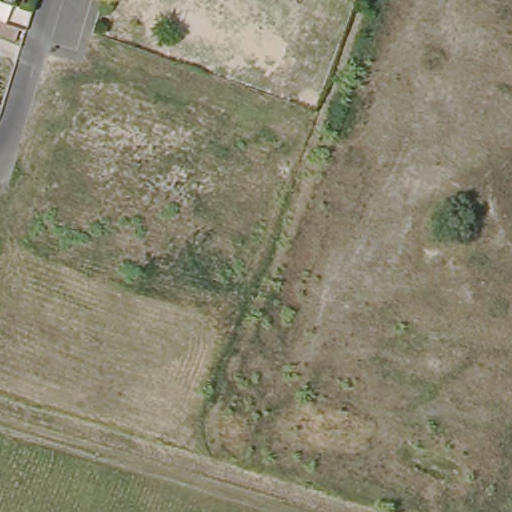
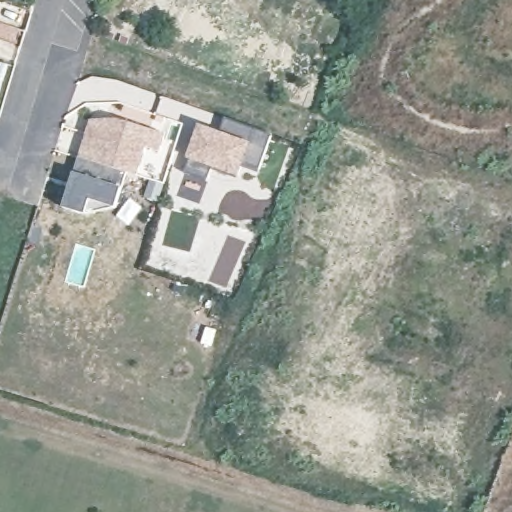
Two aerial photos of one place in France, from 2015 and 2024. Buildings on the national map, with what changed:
new [(219,132),(225,118),(271,134),(257,173),(243,166),(238,179),(209,167),(206,180),(184,172),(187,159),(199,125),(219,132)]
new [(164,135),(160,151),(147,148),(138,177),(125,173),(121,188),(115,207),(85,215),(63,207),(74,173),(90,120),(164,135)]

